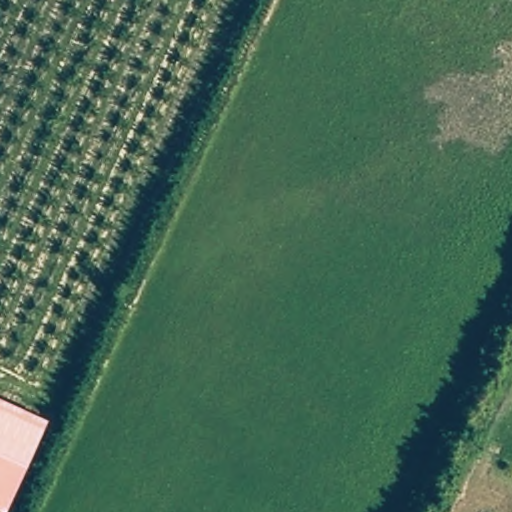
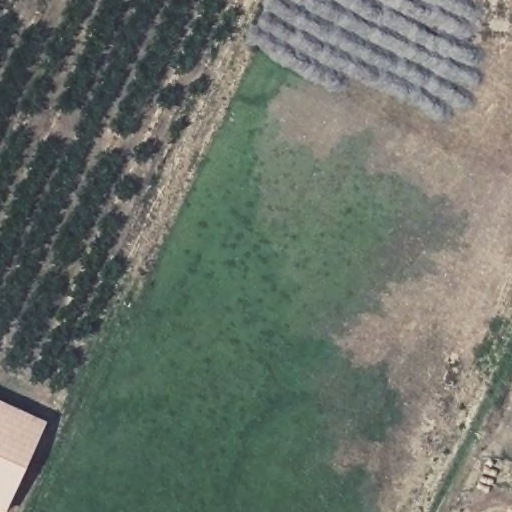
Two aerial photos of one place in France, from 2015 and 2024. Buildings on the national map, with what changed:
unchanged [(0,512),(0,399),(50,421),(8,512),(0,512)]

